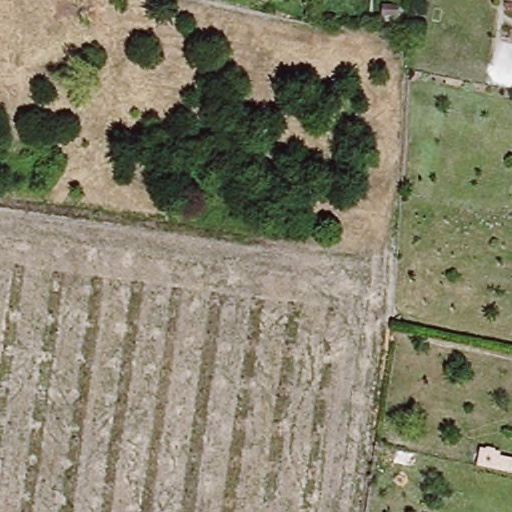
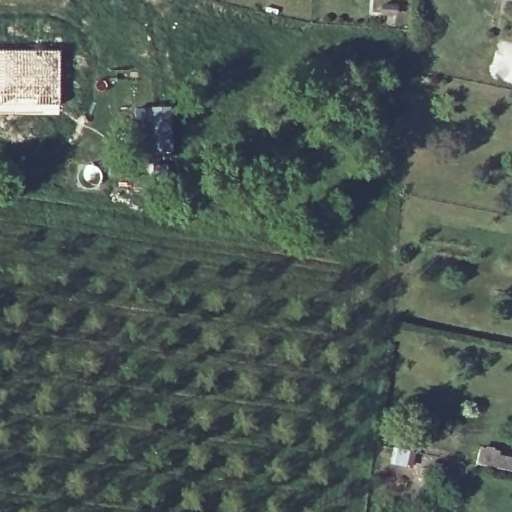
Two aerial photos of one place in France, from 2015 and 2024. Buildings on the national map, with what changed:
unchanged [(505,3),(505,0),(512,0),(512,4),(505,3)]
new [(58,115),(0,113),(0,49),(59,50),(58,115)]

